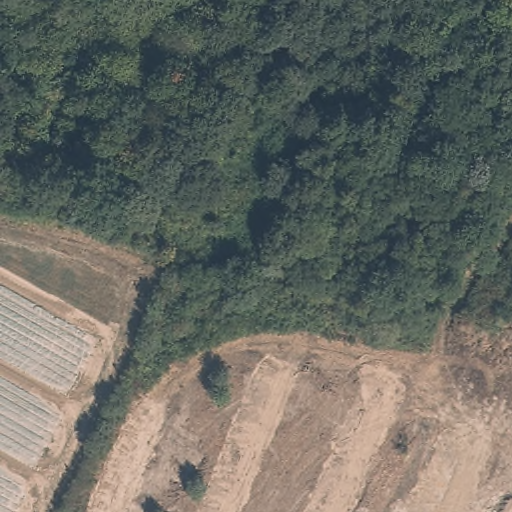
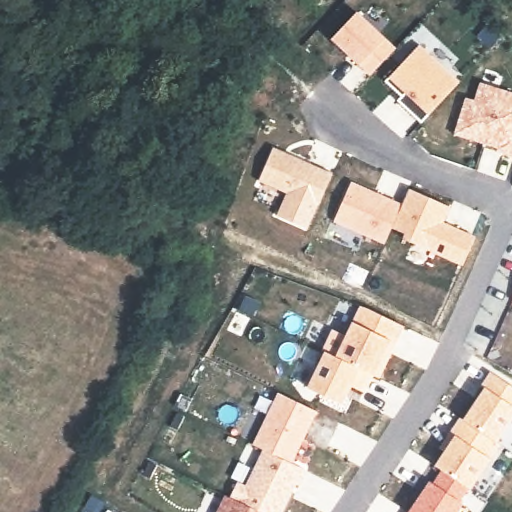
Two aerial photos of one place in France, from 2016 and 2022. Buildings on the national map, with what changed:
new [(357,13),(396,49),(371,76),(332,39),(357,13)]
new [(420,45),(460,83),(422,123),(398,101),(405,93),(400,89),(397,92),(385,81),(420,45)]
new [(466,98),(475,101),(480,83),(512,93),(512,156),(497,151),(499,144),(485,140),(484,144),(465,138),(470,123),(460,120),(466,98)]
new [(274,148),(333,174),(308,230),(277,216),(286,194),(260,181),(274,148)]
new [(352,182),(402,205),(392,228),(385,244),(335,222),(352,182)]
new [(402,205),(409,189),(450,207),(443,223),(475,237),(463,266),(403,239),(406,234),(392,228),(402,205)]
new [(333,329),(346,336),(361,306),(368,309),(404,326),(380,378),(372,375),(325,352),(323,351),(333,329)]
new [(325,352),(372,375),(363,392),(352,387),(342,405),(308,388),(325,352)]
new [(430,480),(433,482),(441,471),(434,467),(443,452),(439,449),(461,415),(464,417),(483,387),(480,385),(490,372),(512,386),(512,418),(488,456),(490,459),(470,489),(461,503),(462,503),(457,512),(408,512),(430,480)]
new [(278,393),(317,412),(292,464),(264,450),(254,445),(278,393)]
new [(238,483),(246,487),(264,450),(292,464),(307,471),(300,486),(296,484),(282,512),(259,512),(230,498),(238,483)]
new [(225,495),(230,498),(259,512),(217,512),(225,495)]

